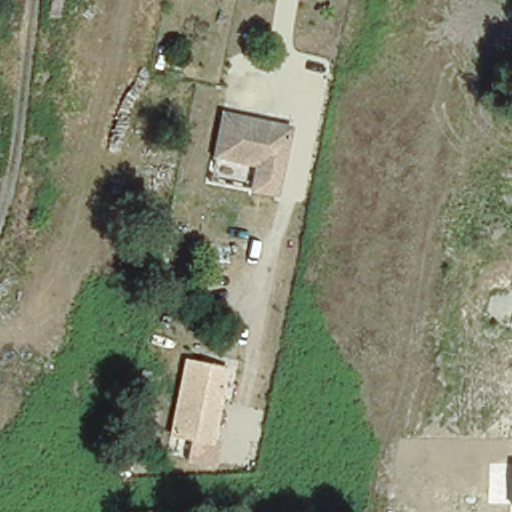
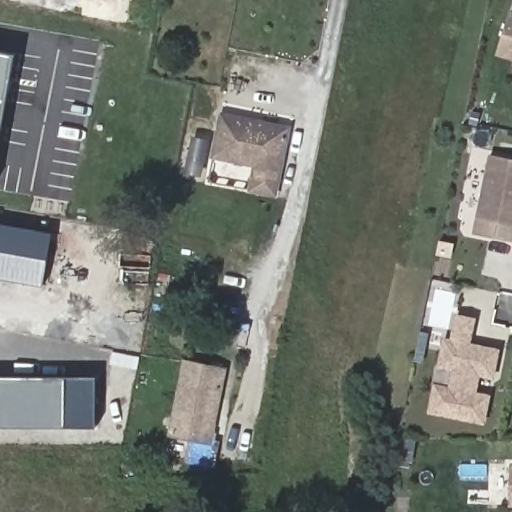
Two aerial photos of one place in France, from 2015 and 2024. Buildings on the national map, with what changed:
new [(512,12),(512,59),(495,54),(511,12),(512,12)]
new [(14,54),(0,135),(0,52),(14,54)]
unchanged [(287,130),(275,197),(250,193),(255,167),(212,160),(220,117),(287,130)]
new [(480,221),(493,157),(512,161),(512,244),(477,237),(480,221)]
new [(0,278),(0,225),(52,234),(43,286),(0,278)]
new [(495,382),(481,380),(477,398),(491,401),(485,427),(432,417),(437,391),(452,393),(456,375),(441,371),(447,345),(455,346),(460,321),(476,324),(471,350),(500,356),(495,382)]
unchanged [(227,368),(212,443),(172,435),(188,360),(227,368)]
new [(67,377),(67,430),(0,429),(0,377),(67,377)]
new [(67,377),(95,377),(95,430),(67,430),(67,377)]
unchanged [(512,462),(512,507),(510,507),(512,462)]

